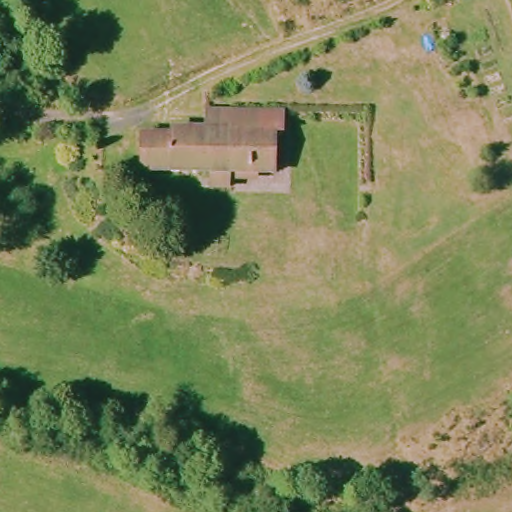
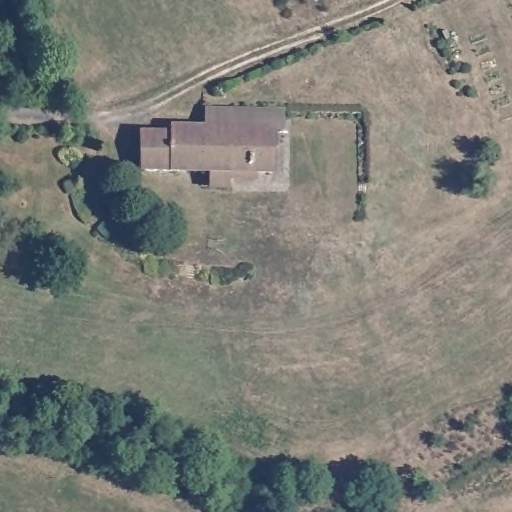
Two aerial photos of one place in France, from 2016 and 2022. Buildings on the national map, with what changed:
unchanged [(211,189),(211,177),(144,176),(145,141),(174,142),(174,134),(208,135),(209,116),(231,116),(284,112),(284,135),(276,135),(276,177),(235,177),(234,190),(211,189)]

